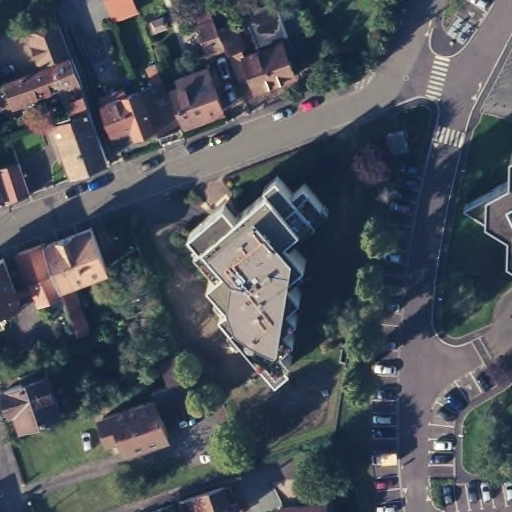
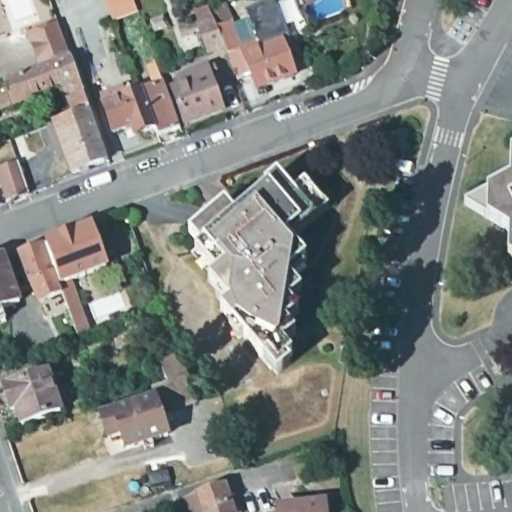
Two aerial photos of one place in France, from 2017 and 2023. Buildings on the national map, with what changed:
unchanged [(106,0),(131,0),(110,8),(106,0)]
unchanged [(204,55),(193,25),(189,12),(204,7),(207,10),(220,6),(226,22),(239,56),(255,51),(252,45),(259,42),(262,48),(277,42),(285,40),(290,54),(283,56),(290,76),(251,90),(246,77),(233,82),(220,49),(204,55)]
unchanged [(37,73),(25,40),(53,30),(64,57),(65,62),(37,73)]
unchanged [(140,86),(155,80),(147,62),(145,51),(153,49),(156,59),(180,124),(158,132),(155,123),(155,124),(154,123),(140,86)]
unchanged [(66,63),(74,85),(56,91),(58,97),(32,107),(30,101),(9,109),(0,112),(0,88),(1,88),(37,73),(66,63)]
unchanged [(208,64),(211,72),(223,105),(185,120),(172,86),(188,80),(185,71),(208,64)]
unchanged [(101,94),(125,85),(126,91),(140,86),(154,123),(155,124),(133,132),(128,120),(112,126),(102,96),(101,94)]
unchanged [(102,166),(68,179),(51,133),(50,128),(69,121),(63,106),(78,99),(85,115),(90,131),(102,166)]
unchanged [(404,130),(408,150),(392,154),(386,135),(404,130)]
unchanged [(8,204),(0,178),(0,144),(11,140),(30,195),(8,204)]
unchanged [(496,258),(497,232),(453,205),(498,179),(499,154),(512,147),(512,267),(496,258)]
unchanged [(229,298),(209,275),(216,268),(195,244),(200,240),(189,227),(213,206),(225,220),(280,172),(292,187),(304,177),(324,201),(286,232),(306,255),(287,272),(301,288),(290,299),(298,310),(286,320),(295,330),(283,341),(293,351),(274,368),(221,305),(229,298)]
unchanged [(102,263),(72,275),(65,277),(50,232),(91,218),(102,263)]
unchanged [(17,244),(43,234),(54,265),(28,274),(17,244)]
unchanged [(27,301),(0,311),(0,256),(8,253),(27,301)]
unchanged [(162,357),(180,351),(189,373),(196,398),(157,411),(150,395),(148,387),(170,380),(162,357)]
unchanged [(17,404),(11,406),(5,385),(50,371),(61,408),(23,421),(17,404)]
unchanged [(165,431),(126,443),(121,430),(110,435),(102,413),(114,408),(150,395),(157,411),(165,431)]
unchanged [(179,498),(226,482),(232,500),(240,497),(245,510),(237,512),(184,512),(179,498)]
unchanged [(322,500),(324,512),(280,512),(279,506),(322,500)]

